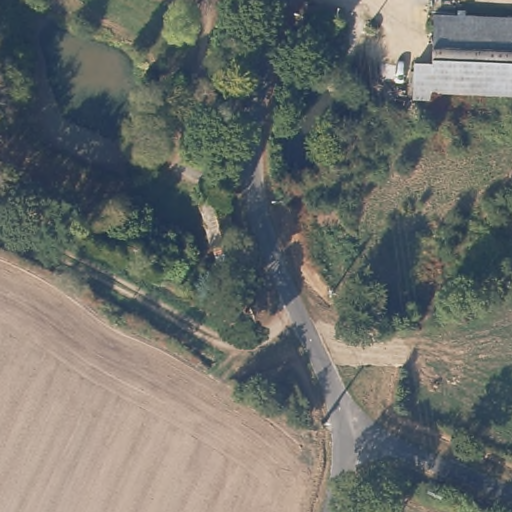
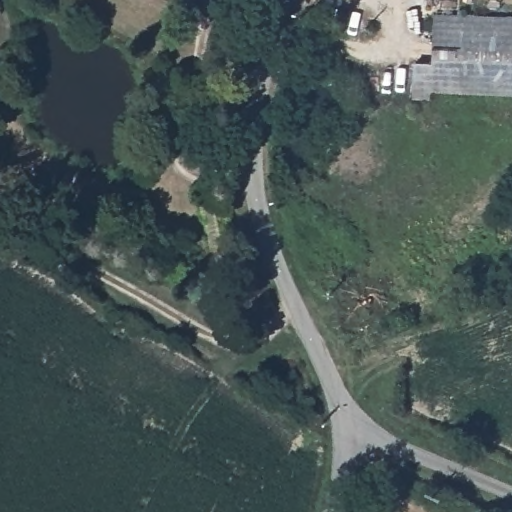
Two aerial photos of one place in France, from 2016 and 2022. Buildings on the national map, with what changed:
unchanged [(406,92),(407,85),(408,57),(427,58),(429,12),(453,13),(454,7),(463,8),(463,13),(512,15),(512,89),(424,86),(424,94),(406,92)]
unchanged [(219,179),(229,216),(230,220),(239,256),(220,262),(209,226),(207,227),(195,180),(217,174),(219,179)]

